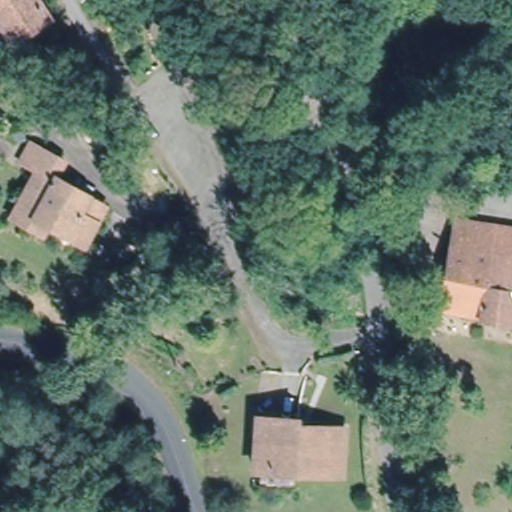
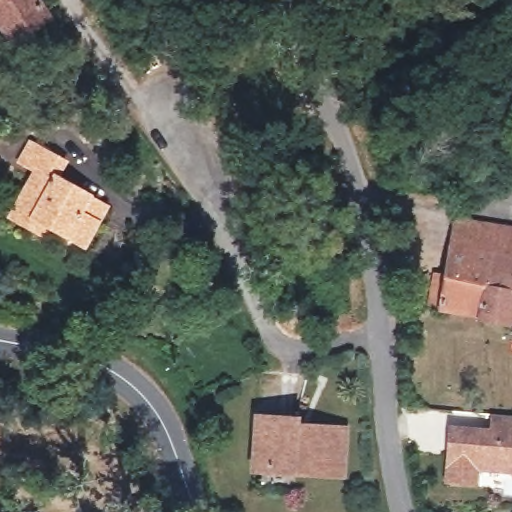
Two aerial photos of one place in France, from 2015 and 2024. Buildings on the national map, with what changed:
unchanged [(0,25),(0,0),(33,0),(46,20),(18,38),(12,42),(1,26),(0,25)]
unchanged [(6,217),(15,199),(32,170),(16,162),(27,143),(59,162),(50,178),(101,206),(79,244),(43,224),(37,235),(6,217)]
unchanged [(496,285),(485,283),(481,315),(439,308),(429,306),(435,272),(445,274),(450,244),(455,219),(501,226),(497,253),(501,254),(496,285)]
unchanged [(512,321),(481,315),(485,283),(496,285),(501,254),(497,253),(501,226),(512,228),(512,321)]
new [(476,486),(443,482),(449,425),(490,427),(491,413),(512,415),(512,471),(477,469),(476,486)]
unchanged [(251,442),(253,417),(295,420),(295,426),(340,429),(337,474),(260,469),(249,469),(251,442)]

